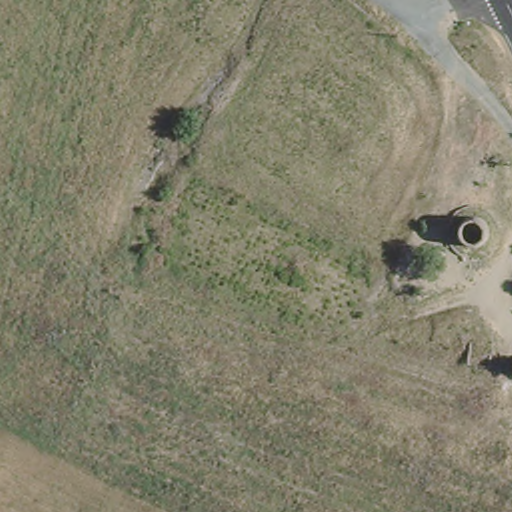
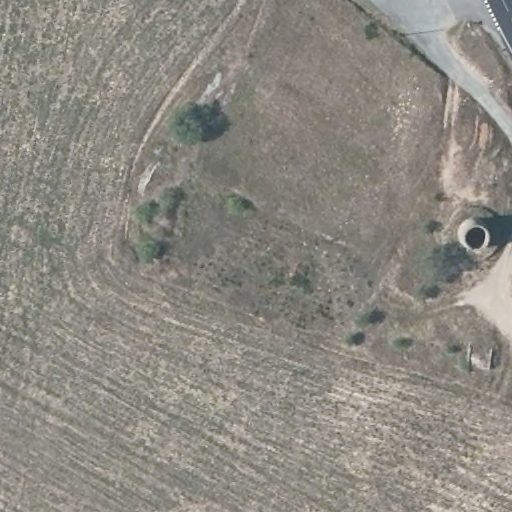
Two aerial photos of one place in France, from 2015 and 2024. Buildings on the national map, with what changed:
unchanged [(461,217),(467,214),(478,215),(486,225),(484,237),(475,241),(463,239),(461,229),(461,217)]

